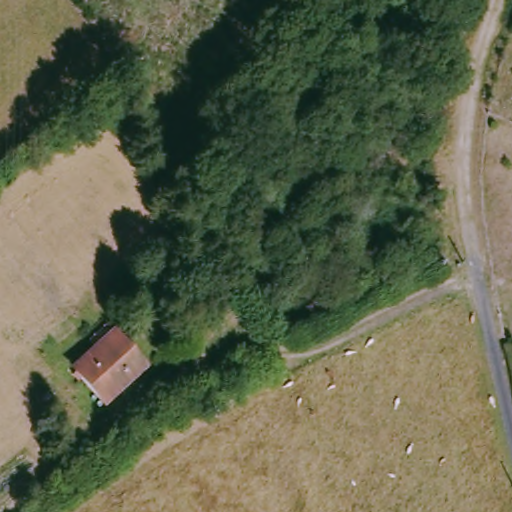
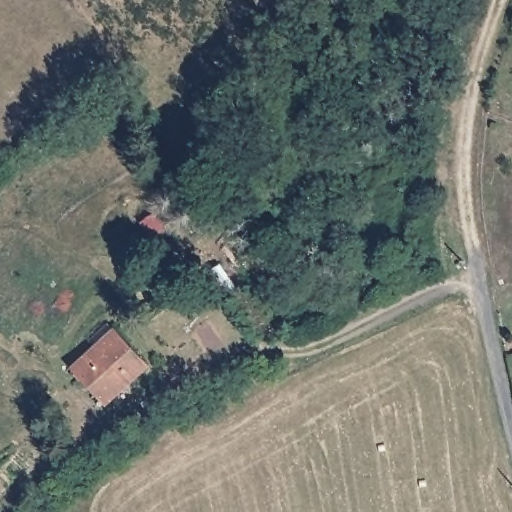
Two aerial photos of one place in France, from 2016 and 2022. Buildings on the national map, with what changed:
unchanged [(211,274),(231,301),(215,312),(196,286),(211,274)]
unchanged [(80,372),(101,352),(92,340),(111,323),(150,368),(111,406),(80,372)]

